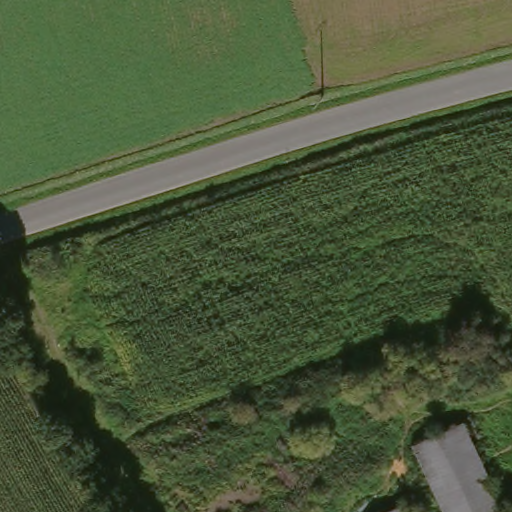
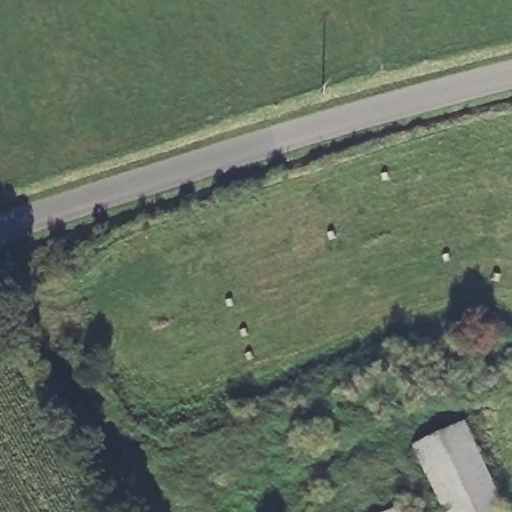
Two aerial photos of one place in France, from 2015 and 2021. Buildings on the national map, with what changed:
unchanged [(499,512),(445,512),(413,447),(464,421),(505,509),(499,512)]
unchanged [(389,512),(405,504),(409,512),(389,512)]

